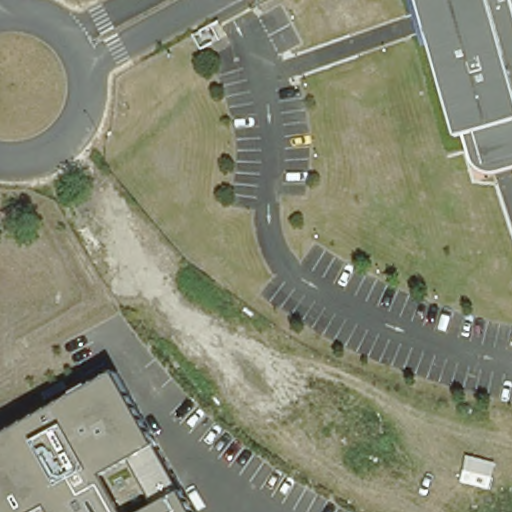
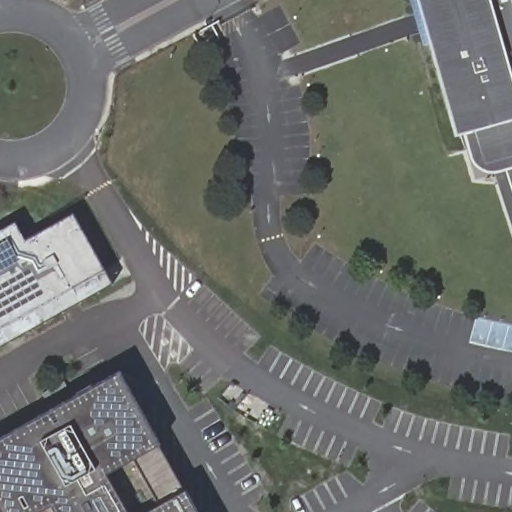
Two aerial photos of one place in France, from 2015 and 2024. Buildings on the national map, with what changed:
unchanged [(490,175),(478,172),(469,164),(464,133),(453,135),(413,0),(512,0),(512,170),(490,175)]
new [(24,243),(73,216),(110,285),(0,347),(0,233),(14,225),(24,243)]
unchanged [(193,512),(0,512),(0,440),(118,376),(157,446),(183,493),(193,512)]

